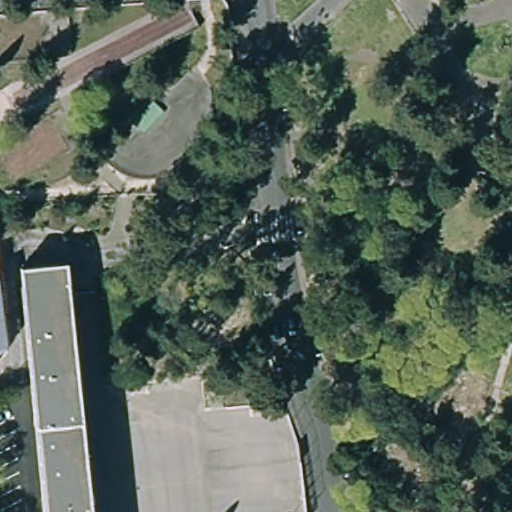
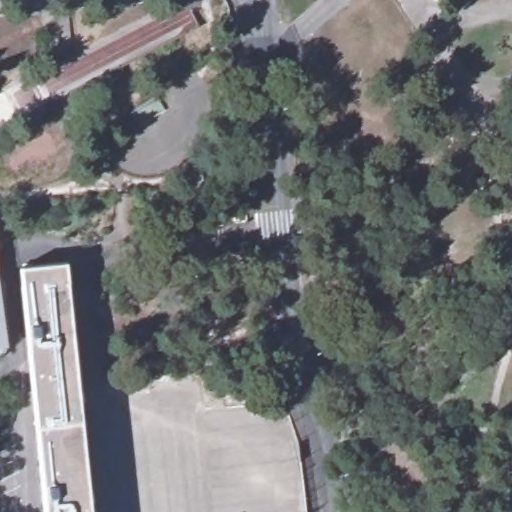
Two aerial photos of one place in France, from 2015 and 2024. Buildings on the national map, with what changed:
unchanged [(20,262),(63,258),(89,512),(45,512),(27,331),(20,262)]
unchanged [(9,345),(5,348),(0,349),(0,275),(5,309),(9,345)]

